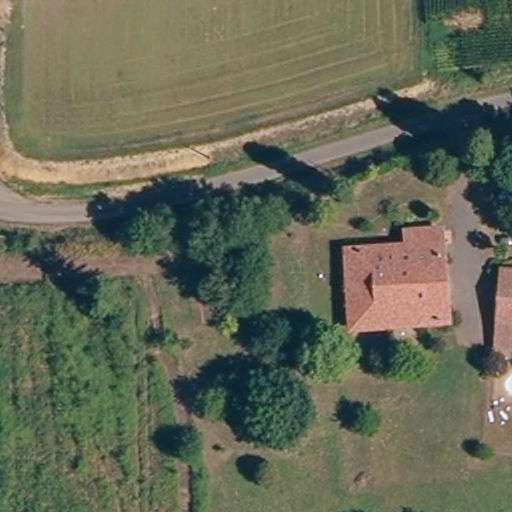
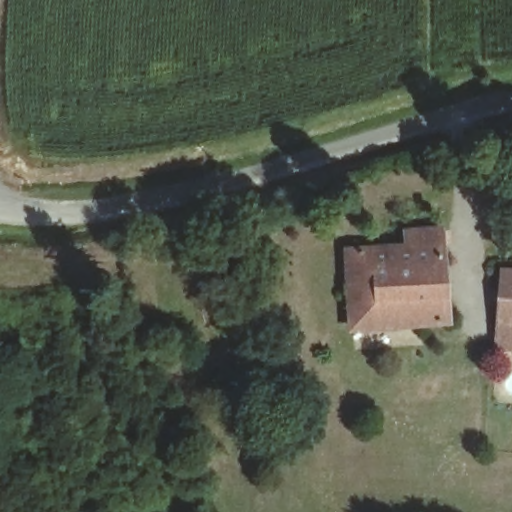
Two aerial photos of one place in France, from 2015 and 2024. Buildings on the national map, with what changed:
unchanged [(354,334),(349,255),(394,254),(393,242),(445,239),(453,325),(392,331),(378,332),(354,334)]
unchanged [(503,271),(512,272),(512,351),(495,348),(503,271)]

